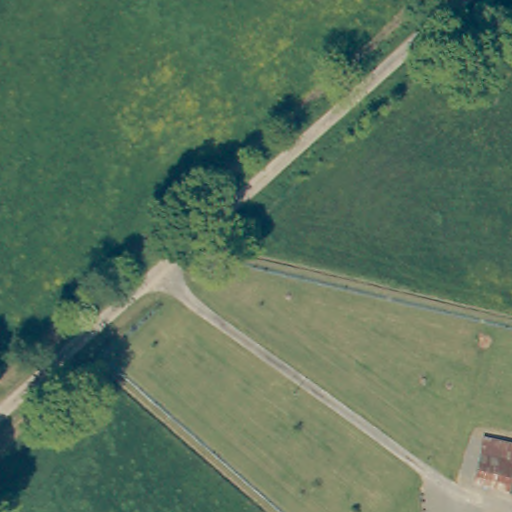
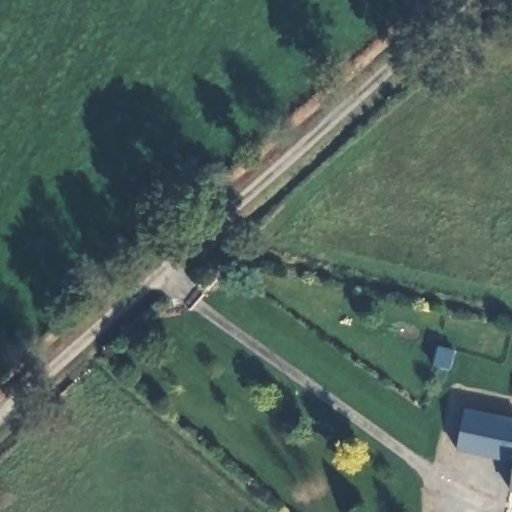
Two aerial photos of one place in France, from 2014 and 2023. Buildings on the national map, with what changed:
new [(466,410),(512,420),(512,463),(457,452),(466,410)]
unchanged [(506,492),(512,468),(512,493),(506,492)]

